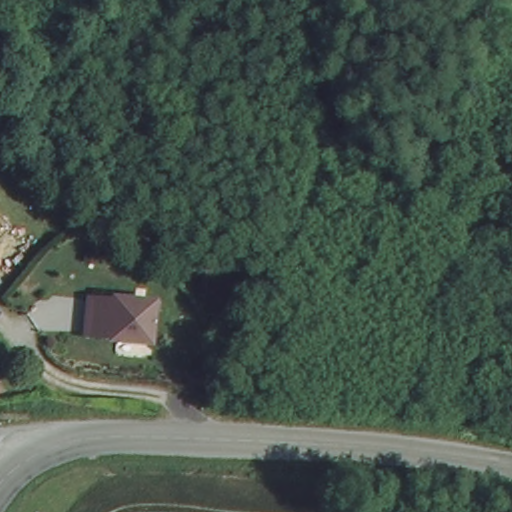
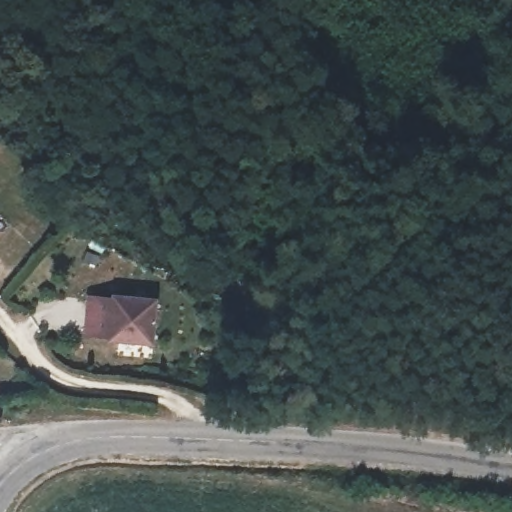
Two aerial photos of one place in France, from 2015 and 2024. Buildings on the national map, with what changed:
unchanged [(116,297),(116,295),(156,298),(153,339),(113,335),(113,334),(88,332),(90,295),(116,297)]

